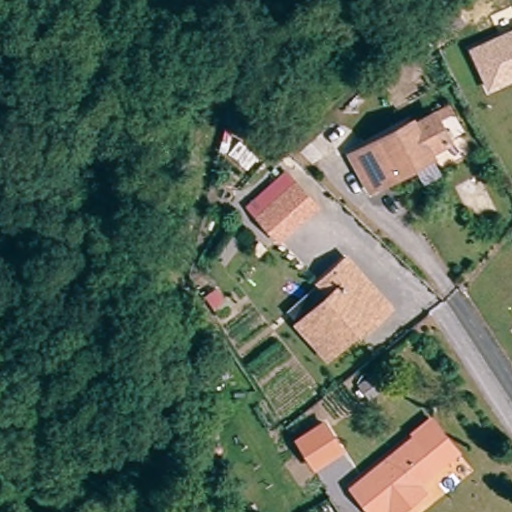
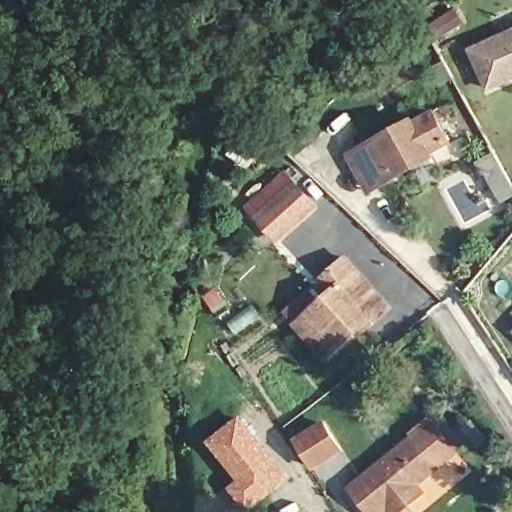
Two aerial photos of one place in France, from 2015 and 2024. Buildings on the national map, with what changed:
unchanged [(496,88),(478,49),(512,33),(512,80),(496,88)]
unchanged [(353,156),(366,149),(389,135),(412,121),(414,124),(433,113),(448,140),(429,151),(431,154),(385,182),(372,189),(353,156)]
unchanged [(247,203),(284,172),(318,205),(281,243),(247,203)]
unchanged [(355,333),(326,359),(296,324),(328,296),(317,284),(344,259),(356,273),(388,309),(379,318),(364,332),(358,337),(355,333)]
new [(240,414),(292,474),(249,512),(227,488),(237,479),(206,441),(240,414)]
new [(316,470),(295,440),(327,420),(347,451),(316,470)]
unchanged [(420,494),(398,512),(396,512),(390,505),(381,512),(374,512),(354,485),(415,436),(434,420),(458,451),(439,466),(418,483),(425,491),(420,494)]

